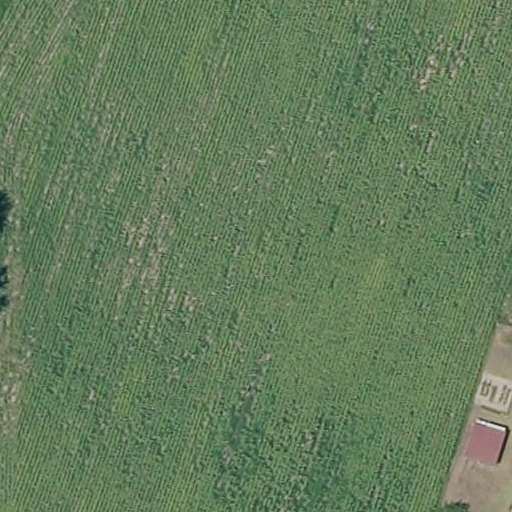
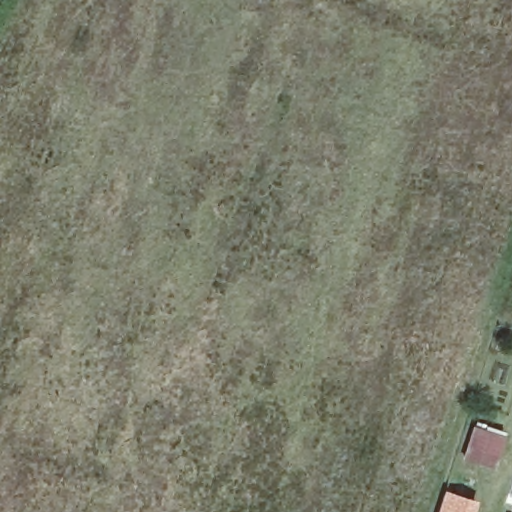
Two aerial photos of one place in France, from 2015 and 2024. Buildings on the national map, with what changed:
unchanged [(472,432),(501,441),(495,459),(467,450),(472,432)]
new [(480,499),(477,512),(438,512),(445,489),(480,499)]

